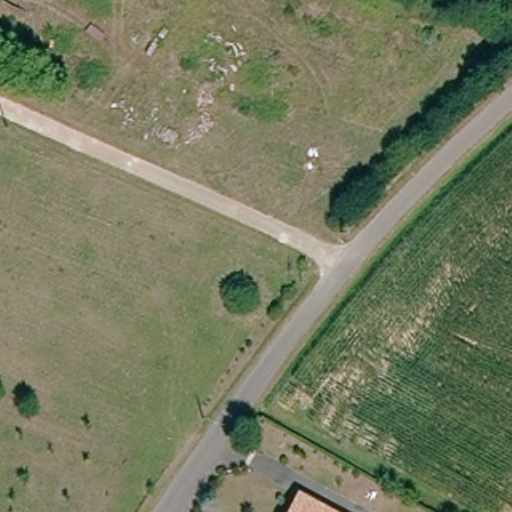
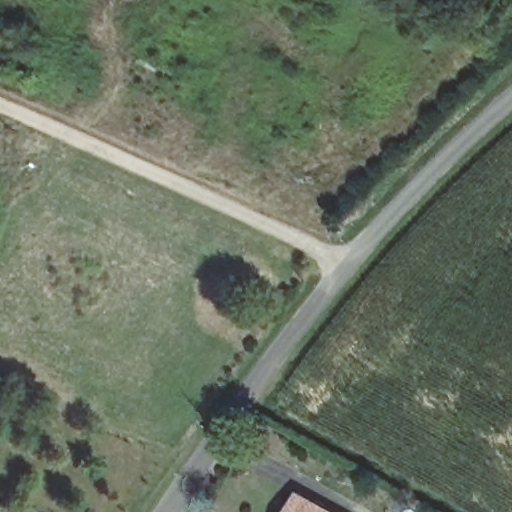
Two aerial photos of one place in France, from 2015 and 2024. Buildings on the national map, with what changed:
unchanged [(339,512),(293,512),(303,492),(339,512)]

